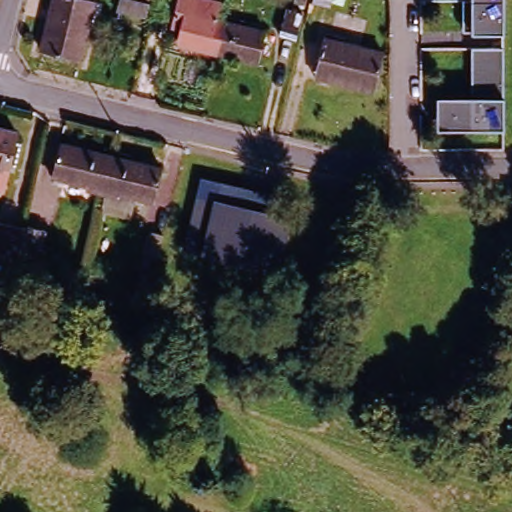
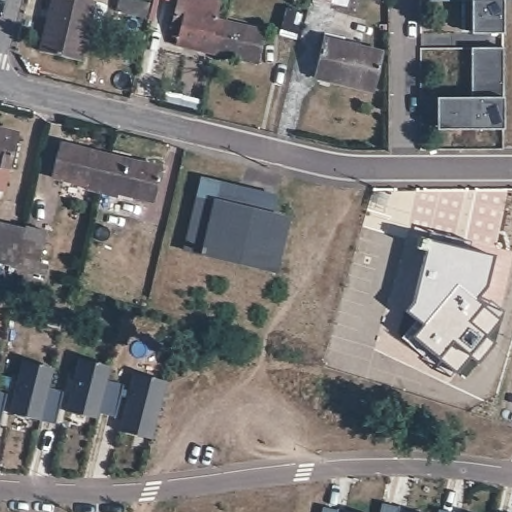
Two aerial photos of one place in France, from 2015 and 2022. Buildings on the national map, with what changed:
unchanged [(55,0),(84,0),(94,2),(79,60),(42,52),(55,0)]
unchanged [(215,58),(174,48),(178,34),(169,32),(177,0),(180,0),(216,9),(212,25),(223,28),(215,58)]
unchanged [(294,0),(303,0),(305,0),(296,34),(286,31),(294,0)]
unchanged [(333,2),(324,0),(334,0),(333,2)]
unchanged [(507,32),(466,31),(466,0),(507,0),(507,32)]
unchanged [(223,28),(226,15),(266,25),(254,68),(215,58),(223,28)]
unchanged [(324,38),(383,53),(374,90),(314,75),(324,38)]
unchanged [(502,43),(502,125),(471,125),(471,93),(470,43),(502,43)]
unchanged [(471,125),(437,125),(437,93),(471,93),(471,125)]
unchanged [(17,129),(3,186),(0,186),(0,125),(17,129)]
unchanged [(99,194),(83,190),(85,186),(48,176),(56,144),(108,156),(99,194)]
unchanged [(158,168),(149,201),(116,193),(115,198),(99,194),(108,156),(158,168)]
unchanged [(273,268),(183,248),(200,173),(241,182),(275,190),(271,210),(286,213),(273,268)]
unchanged [(39,271),(29,268),(21,265),(0,259),(0,223),(1,218),(31,226),(32,222),(51,226),(39,271)]
new [(489,273),(472,287),(504,310),(490,330),(498,334),(481,355),(473,350),(459,364),(413,326),(423,315),(407,301),(413,295),(428,231),(494,246),(489,273)]
new [(115,418),(98,413),(96,419),(65,412),(78,359),(109,366),(105,381),(123,385),(115,418)]
new [(55,425),(40,421),(9,414),(22,361),(53,368),(48,389),(63,393),(55,425)]
new [(133,374),(166,382),(152,440),(119,432),(133,374)]
new [(0,423),(0,393),(7,395),(0,423)]
new [(400,508),(399,512),(380,512),(383,503),(400,508)]
new [(339,511),(338,512),(322,512),(323,507),(339,511)]
new [(345,512),(346,511),(350,512),(345,512)]

